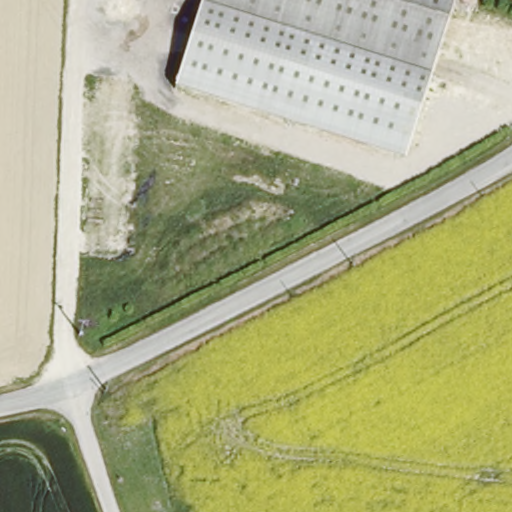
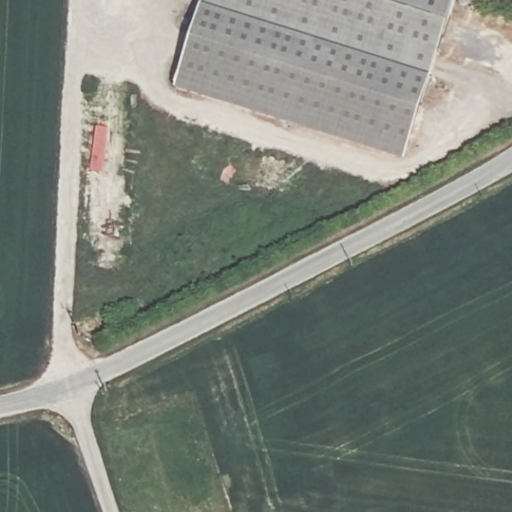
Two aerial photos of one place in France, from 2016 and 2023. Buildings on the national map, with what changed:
unchanged [(433,75),(201,1),(201,0),(455,0),(433,75)]
unchanged [(433,75),(405,163),(174,90),(201,1),(433,75)]

